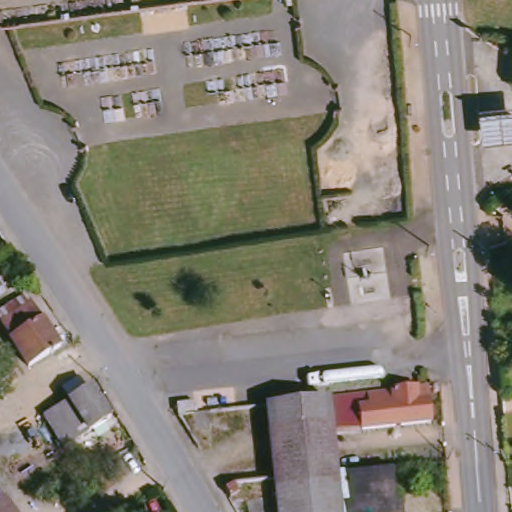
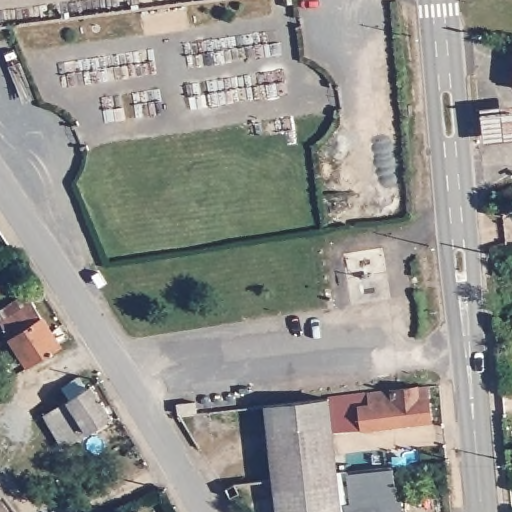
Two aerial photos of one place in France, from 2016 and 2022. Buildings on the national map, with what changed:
unchanged [(484,106),(512,103),(512,141),(486,143),(484,106)]
unchanged [(0,315),(0,307),(28,290),(63,342),(30,362),(0,315)]
unchanged [(102,382),(122,415),(67,447),(47,415),(102,382)]
unchanged [(331,400),(428,390),(433,423),(334,433),(331,400)]
unchanged [(178,399),(197,399),(197,410),(179,412),(178,408),(178,399)]
unchanged [(277,476),(270,407),(331,400),(334,433),(337,470),(277,476)]
unchanged [(400,512),(341,512),(338,488),(337,474),(396,468),(400,512)]
unchanged [(337,470),(337,474),(338,488),(278,494),(277,476),(337,470)]
unchanged [(233,476),(239,487),(230,491),(223,477),(233,476)]
unchanged [(341,512),(280,512),(278,494),(338,488),(341,512)]
unchanged [(0,512),(0,499),(1,498),(6,505),(11,512),(0,512)]

